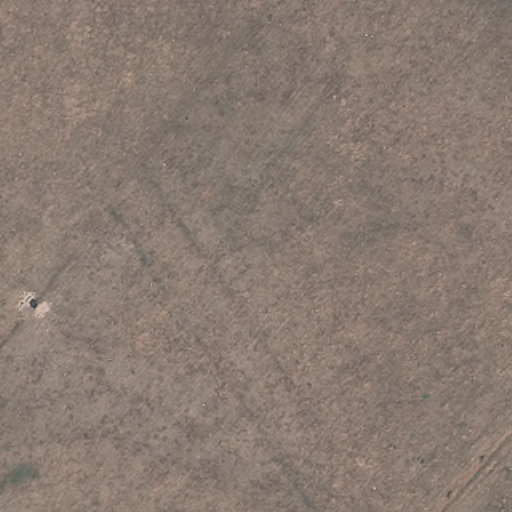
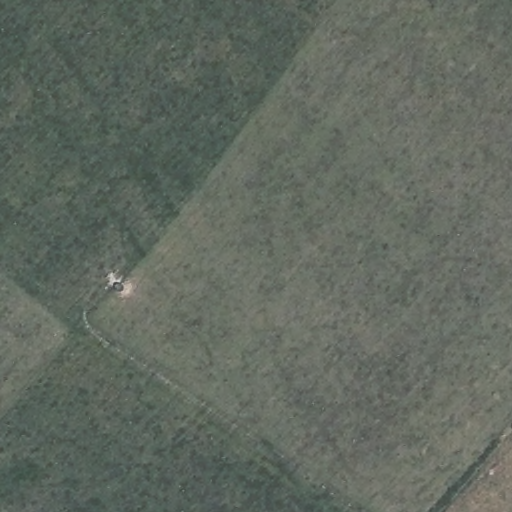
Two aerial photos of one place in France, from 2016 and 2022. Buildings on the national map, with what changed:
[]

